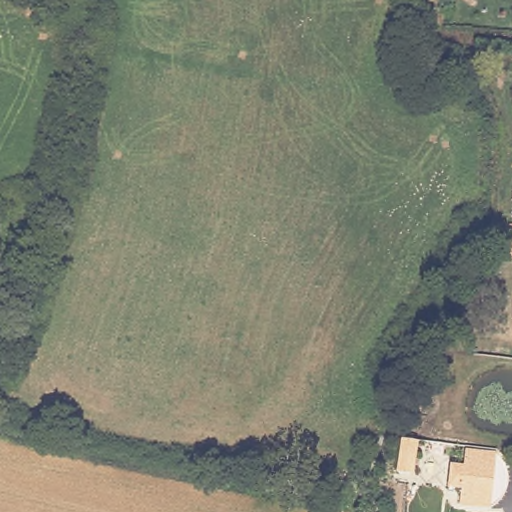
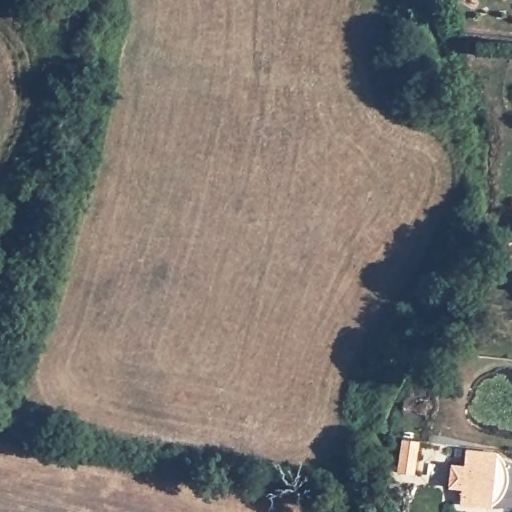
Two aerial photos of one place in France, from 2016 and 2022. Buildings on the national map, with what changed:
unchanged [(512,217),(512,243),(502,241),(505,216),(512,217)]
unchanged [(490,500),(456,496),(458,480),(445,479),(447,456),(460,457),(462,441),(496,445),(490,500)]
unchanged [(396,477),(380,476),(384,442),(390,443),(394,443),(399,444),(396,477)]

